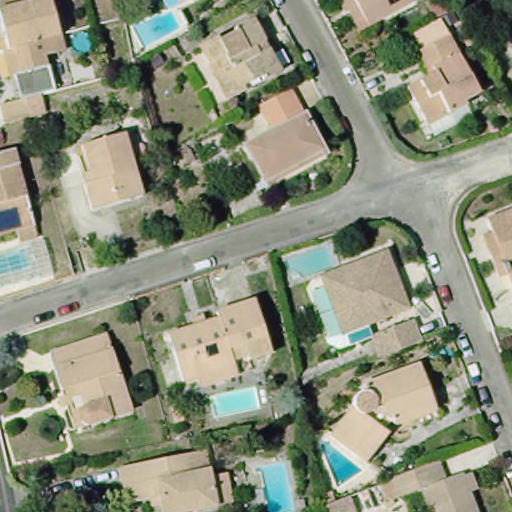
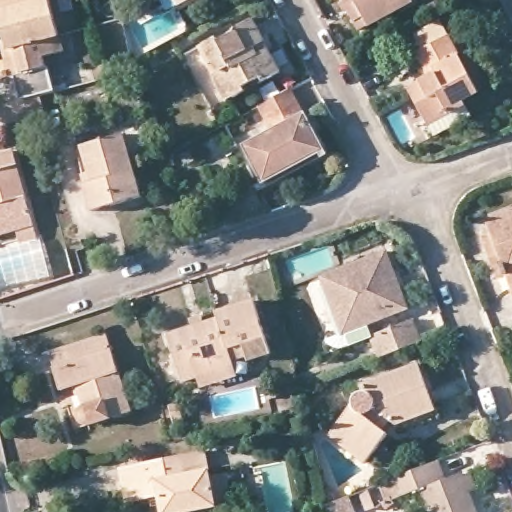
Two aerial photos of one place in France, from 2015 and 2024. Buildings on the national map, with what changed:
unchanged [(5,51),(0,30),(0,7),(27,0),(48,0),(65,62),(45,67),(47,76),(23,83),(10,86),(0,51),(5,51)]
unchanged [(182,0),(195,0),(185,5),(182,0)]
unchanged [(339,0),(410,0),(414,8),(368,32),(358,37),(345,11),(339,0)]
unchanged [(445,6),(452,17),(435,25),(430,14),(445,6)]
unchanged [(221,100),(208,75),(214,72),(209,62),(202,65),(193,47),(212,38),(213,41),(232,32),(230,27),(249,19),(276,71),(258,80),(240,90),(221,100)]
unchanged [(433,142),(427,130),(407,92),(427,80),(415,58),(426,52),(419,39),(437,29),(445,42),(448,40),(480,97),(463,105),(466,110),(472,121),(433,142)]
unchanged [(5,126),(1,106),(27,100),(32,119),(5,126)]
unchanged [(230,136),(225,125),(247,113),(252,124),(230,136)]
unchanged [(268,187),(265,181),(247,147),(305,115),(317,140),(326,157),(268,187)]
unchanged [(139,202),(88,217),(80,189),(69,154),(77,151),(120,140),(139,202)]
unchanged [(0,161),(17,156),(39,231),(22,236),(0,243),(0,231),(0,161)]
unchanged [(512,279),(503,281),(495,259),(487,241),(497,237),(492,225),(512,217),(512,280),(512,279)]
unchanged [(317,277),(383,251),(392,275),(396,285),(405,308),(339,334),(330,310),(322,290),(317,277)]
unchanged [(207,392),(205,383),(189,388),(174,340),(197,331),(196,323),(209,318),(212,328),(225,324),(222,317),(260,306),(272,340),(235,351),(242,371),(244,380),(207,392)]
unchanged [(367,336),(410,320),(418,341),(375,357),(367,336)]
unchanged [(135,416),(98,426),(94,428),(88,429),(85,426),(83,423),(81,419),(82,415),(83,411),(86,410),(80,389),(65,393),(57,370),(52,357),(67,353),(108,339),(135,416)]
unchanged [(388,434),(367,463),(330,436),(355,405),(355,402),(355,397),(358,393),(363,391),(361,385),(420,364),(435,408),(438,416),(388,434)]
unchanged [(184,418),(173,420),(169,406),(180,403),(184,418)]
unchanged [(222,505),(185,512),(168,512),(165,496),(132,501),(126,467),(211,450),(222,505)]
unchanged [(468,486),(477,482),(485,499),(475,503),(478,512),(432,512),(427,498),(400,508),(393,490),(432,475),(445,470),(453,488),(468,483),(468,486)]
unchanged [(333,492),(335,500),(326,504),(323,494),(333,492)]

